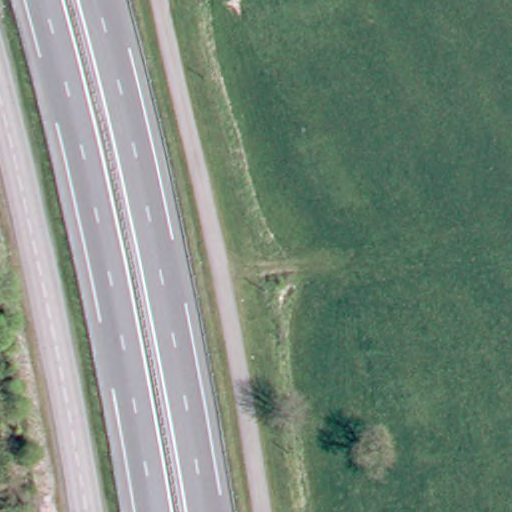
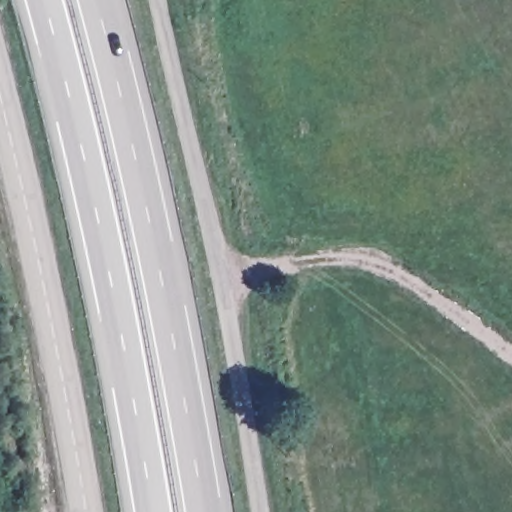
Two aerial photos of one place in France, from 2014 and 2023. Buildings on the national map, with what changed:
[]

